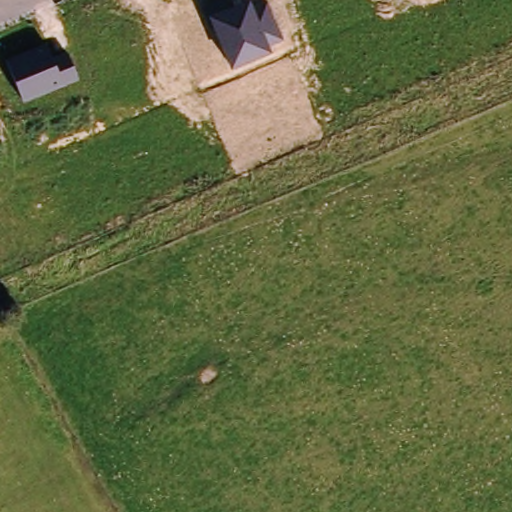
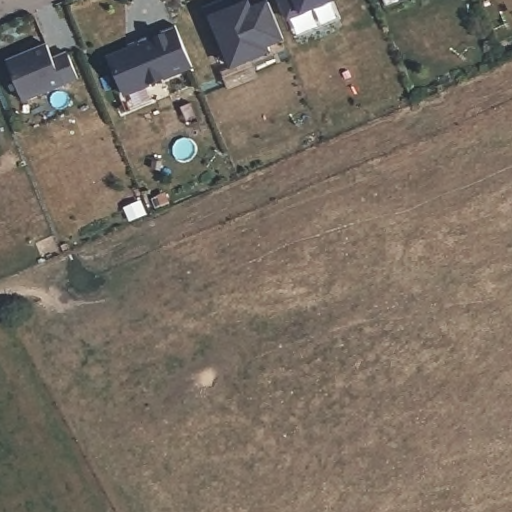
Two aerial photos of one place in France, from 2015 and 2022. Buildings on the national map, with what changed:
unchanged [(249,0),(251,6),(267,0),(284,41),(268,46),(272,53),(232,70),(211,16),(249,0)]
new [(287,20),(279,0),(333,0),(334,1),(287,20)]
new [(137,46),(135,41),(175,25),(192,67),(124,95),(109,58),(137,46)]
unchanged [(45,41),(51,56),(66,51),(79,82),(25,101),(5,56),(45,41)]

